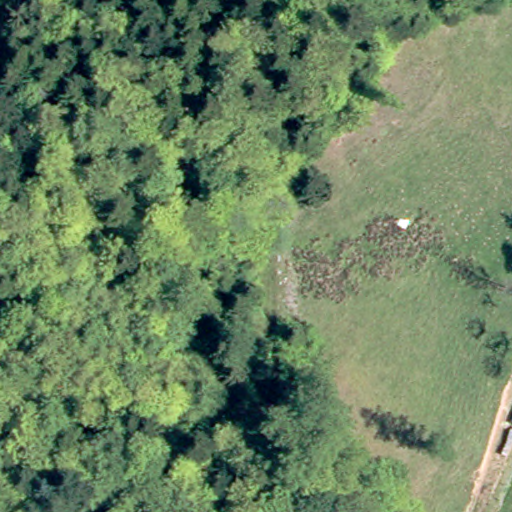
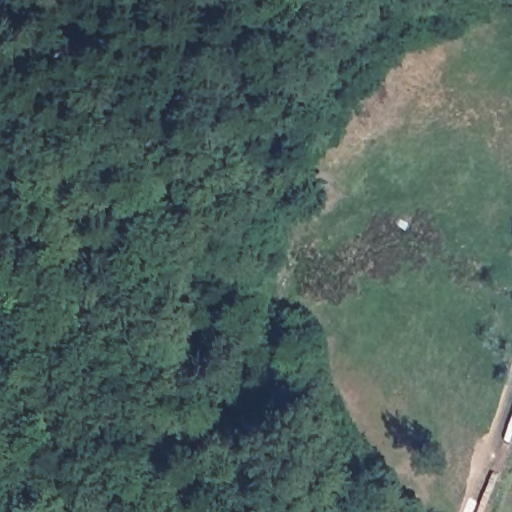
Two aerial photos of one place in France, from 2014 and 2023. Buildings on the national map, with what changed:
[]

